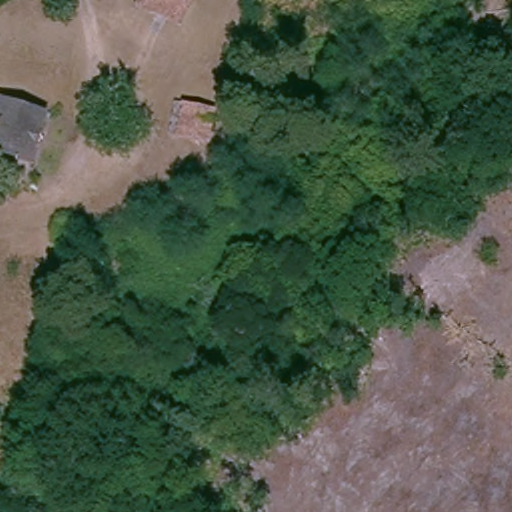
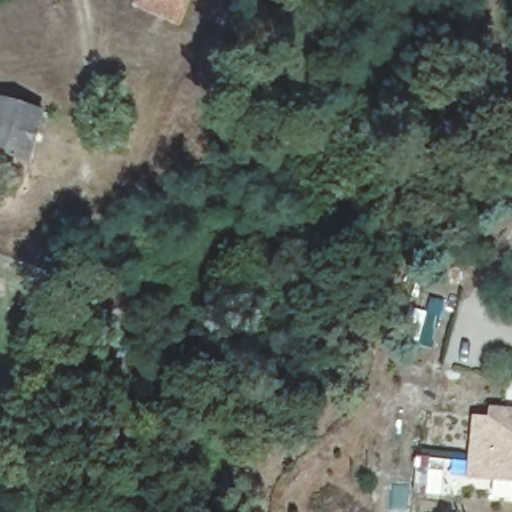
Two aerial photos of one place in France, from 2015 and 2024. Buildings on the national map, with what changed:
unchanged [(139,3),(135,0),(136,0),(197,0),(187,23),(139,3)]
unchanged [(209,129),(203,127),(196,151),(173,144),(186,96),(215,104),(209,129)]
unchanged [(12,160),(10,166),(0,163),(0,108),(0,106),(43,118),(29,165),(12,160)]
new [(468,477),(474,416),(490,417),(491,406),(512,408),(512,481),(468,477)]

